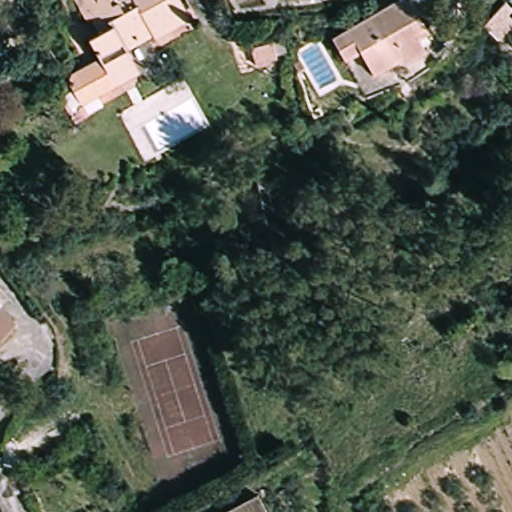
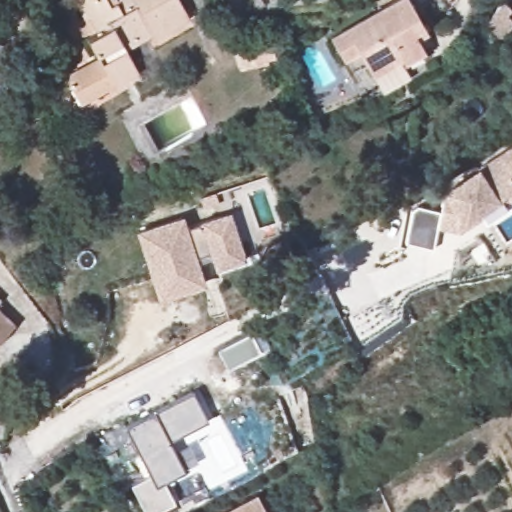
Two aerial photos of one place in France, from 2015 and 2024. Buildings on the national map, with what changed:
unchanged [(70,81),(73,71),(97,57),(86,36),(99,29),(91,15),(87,17),(78,0),(182,0),(184,5),(188,12),(127,46),(136,61),(140,69),(117,81),(81,101),(70,81)]
unchanged [(411,0),(424,22),(427,29),(418,35),(424,45),(403,57),(400,52),(372,69),(358,47),(355,48),(344,55),(332,34),(345,27),(391,0),(411,0)]
unchanged [(512,31),(495,42),(474,15),(491,0),(501,0),(510,15),(512,16),(512,31)]
unchanged [(512,13),(512,16),(510,15),(512,13)]
unchanged [(271,42),(276,59),(268,61),(268,63),(256,67),(250,47),(271,42)]
new [(480,212),(482,219),(455,234),(438,231),(432,250),(405,245),(412,212),(420,209),(440,213),(444,192),(480,169),(512,147),(512,203),(499,201),(480,212)]
new [(200,224),(231,212),(246,259),(215,270),(211,257),(199,262),(206,285),(159,300),(136,233),(184,217),(188,228),(200,224)]
unchanged [(5,297),(0,301),(0,293),(5,297)]
unchanged [(18,320),(0,340),(0,303),(18,320)]
new [(259,328),(268,347),(260,351),(261,352),(228,370),(218,350),(259,328)]
new [(193,393),(206,420),(167,440),(184,470),(156,485),(126,428),(193,393)]
unchanged [(262,490),(273,512),(221,512),(262,490)]

